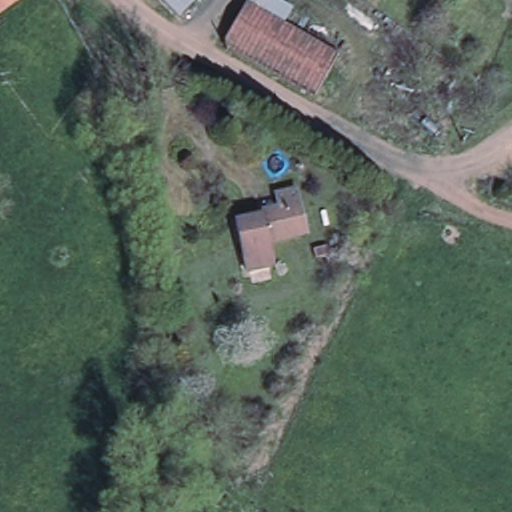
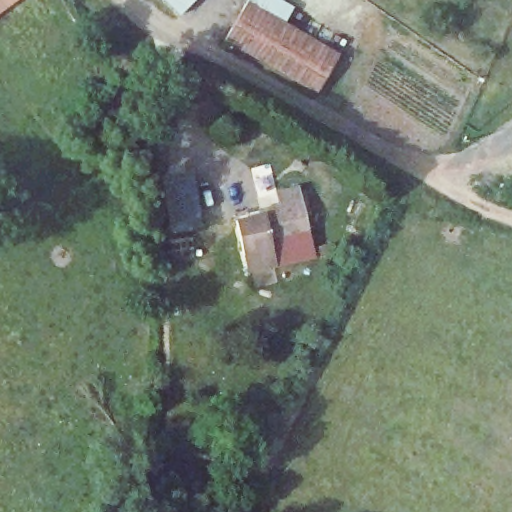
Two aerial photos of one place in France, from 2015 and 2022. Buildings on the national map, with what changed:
unchanged [(0,2),(0,0),(12,0),(3,7),(0,2)]
unchanged [(164,0),(196,0),(180,16),(164,0)]
unchanged [(285,18),(341,51),(314,96),(221,41),(245,0),(281,0),(292,6),(285,18)]
unchanged [(0,9),(0,2),(3,7),(0,9)]
unchanged [(287,212),(286,197),(305,195),(307,210),(311,239),(272,244),(271,244),(267,220),(267,215),(287,212)]
unchanged [(267,220),(271,244),(272,244),(276,270),(250,273),(242,224),(267,220)]
unchanged [(189,491),(177,512),(163,512),(154,507),(167,480),(189,491)]

